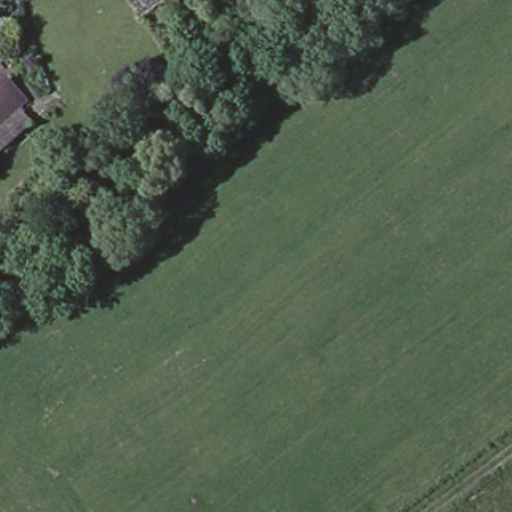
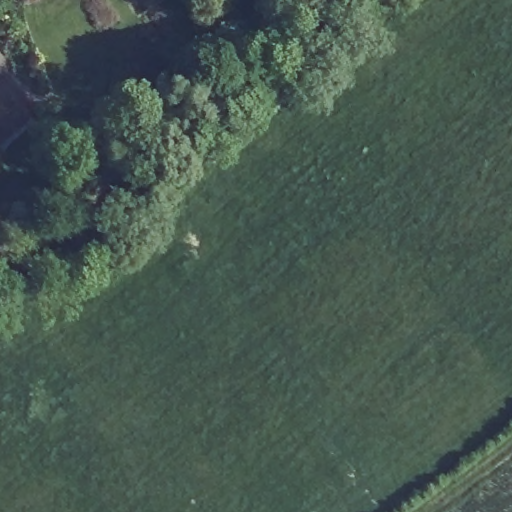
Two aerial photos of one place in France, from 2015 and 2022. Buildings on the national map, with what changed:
unchanged [(23,98),(0,120),(0,82),(5,78),(23,98)]

